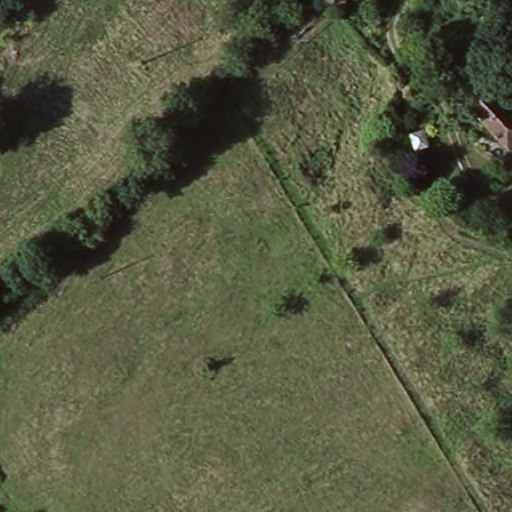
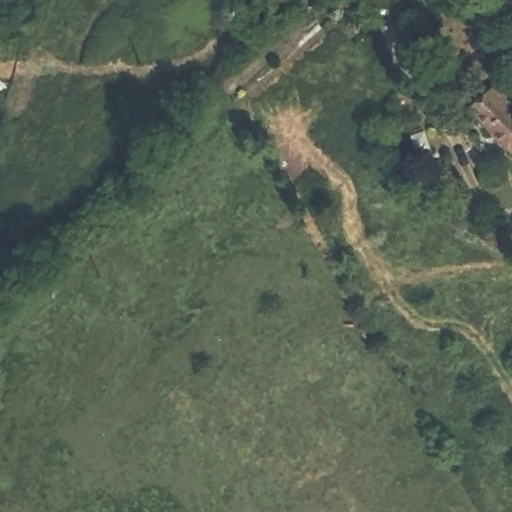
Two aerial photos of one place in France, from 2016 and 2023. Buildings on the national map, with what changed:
unchanged [(502,116),(512,132),(512,156),(500,162),(464,106),(497,86),(512,111),(502,116)]

